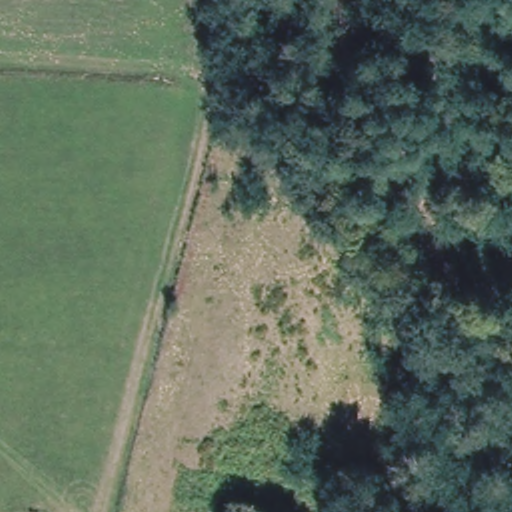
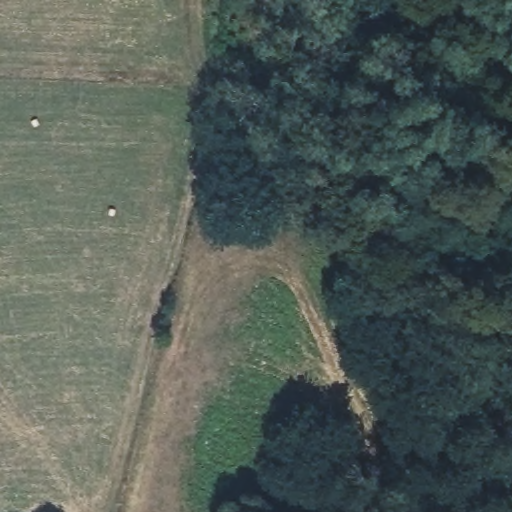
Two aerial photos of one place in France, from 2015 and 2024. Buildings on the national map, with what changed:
[]

